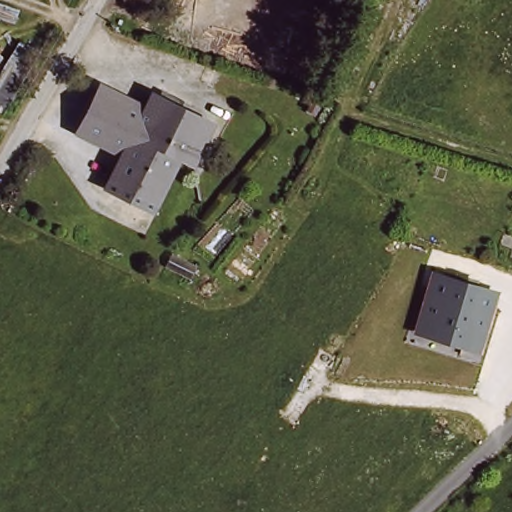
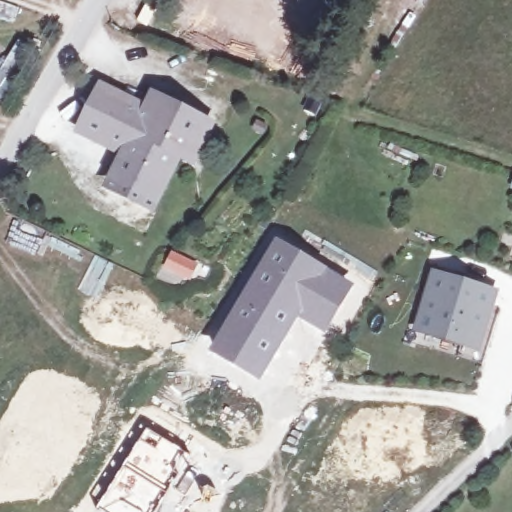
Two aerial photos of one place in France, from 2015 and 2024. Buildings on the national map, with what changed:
unchanged [(106,84),(148,107),(158,90),(215,120),(198,155),(184,147),(165,186),(142,174),(134,194),(114,184),(130,151),(85,128),(106,84)]
new [(275,236),(354,285),(325,333),(298,318),(260,382),(208,351),(275,236)]
new [(170,249),(199,262),(189,282),(160,271),(170,249)]
unchanged [(497,291),(480,351),(413,331),(433,271),(497,291)]
new [(191,454),(181,472),(154,512),(104,512),(96,507),(145,426),(191,454)]

